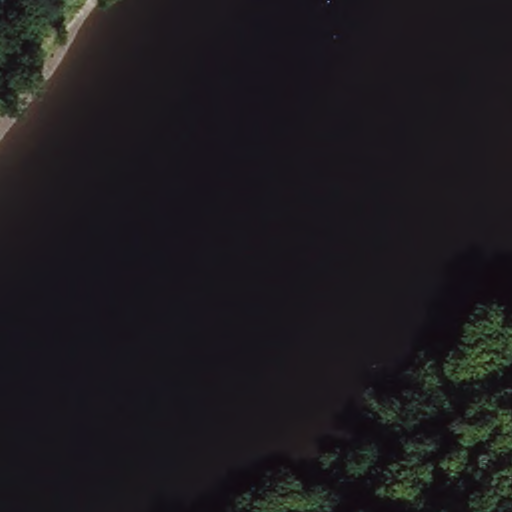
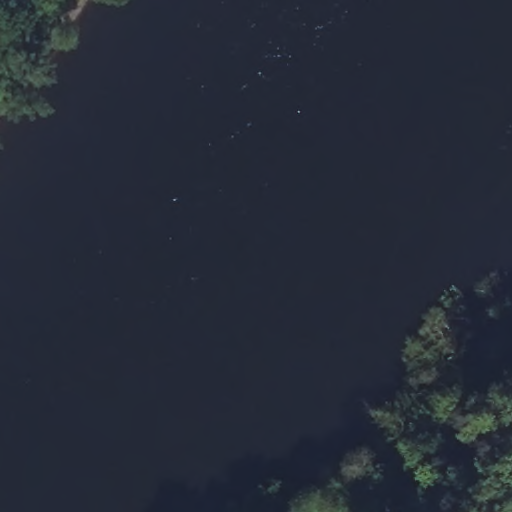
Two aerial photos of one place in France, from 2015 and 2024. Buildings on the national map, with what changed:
[]

